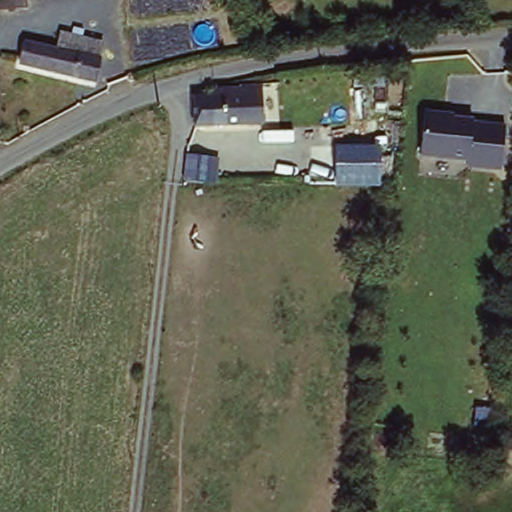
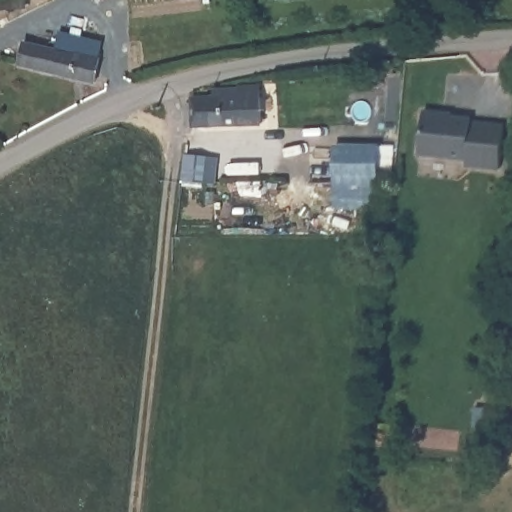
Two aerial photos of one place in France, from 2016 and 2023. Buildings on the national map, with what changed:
unchanged [(30,0),(21,3),(21,9),(0,12),(0,0),(30,0)]
unchanged [(50,46),(55,28),(91,38),(94,48),(90,57),(96,61),(89,86),(15,66),(21,39),(50,46)]
unchanged [(223,99),(222,91),(248,88),(248,86),(268,85),(269,124),(202,130),(201,101),(223,99)]
unchanged [(452,113),(452,116),(472,118),(471,121),(503,126),(499,171),(466,167),(467,162),(419,156),(423,109),(452,113)]
unchanged [(378,145),(378,186),(334,185),(335,144),(378,145)]
unchanged [(210,184),(198,184),(197,184),(181,183),(179,183),(180,159),(180,157),(200,159),(212,160),(210,184)]

